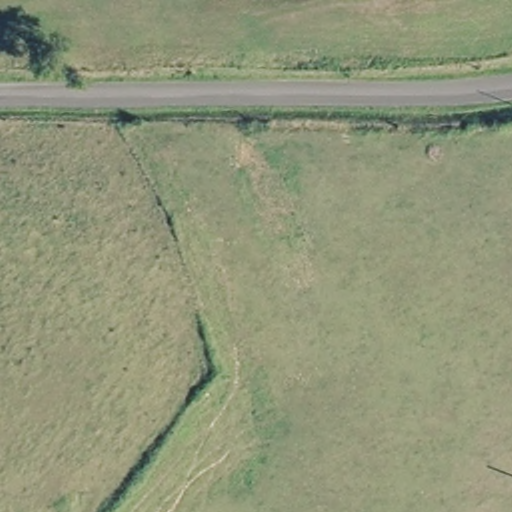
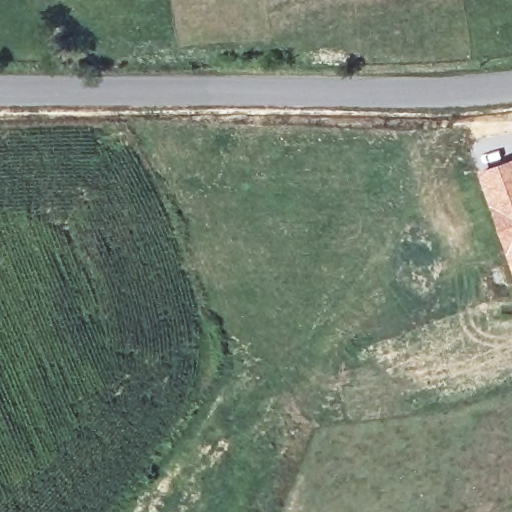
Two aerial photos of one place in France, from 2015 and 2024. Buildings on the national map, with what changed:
new [(512,264),(477,171),(512,157),(512,264)]

